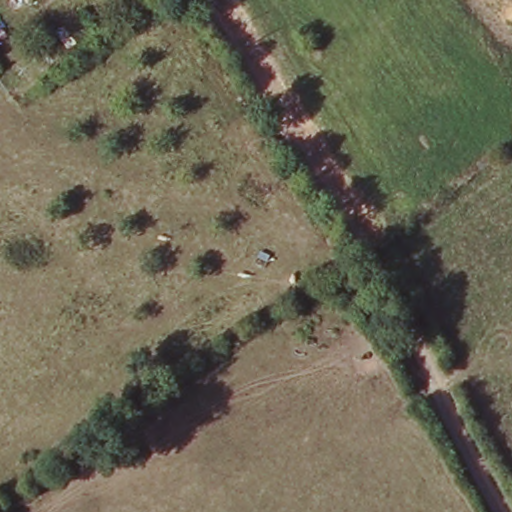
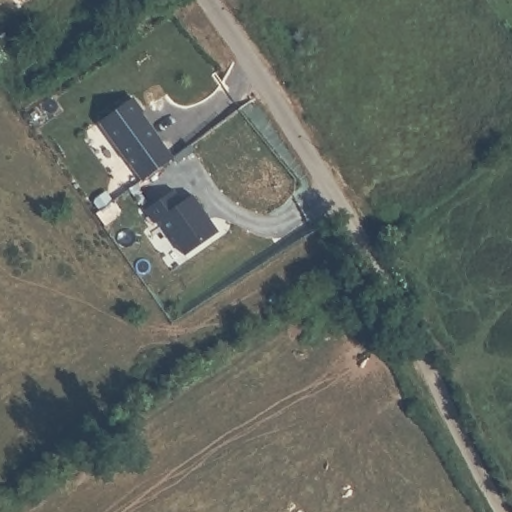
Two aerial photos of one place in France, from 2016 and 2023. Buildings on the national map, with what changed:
new [(132,101),(174,161),(142,183),(100,123),(132,101)]
new [(174,191),(183,203),(191,196),(219,237),(186,259),(162,224),(156,227),(145,212),(174,191)]

